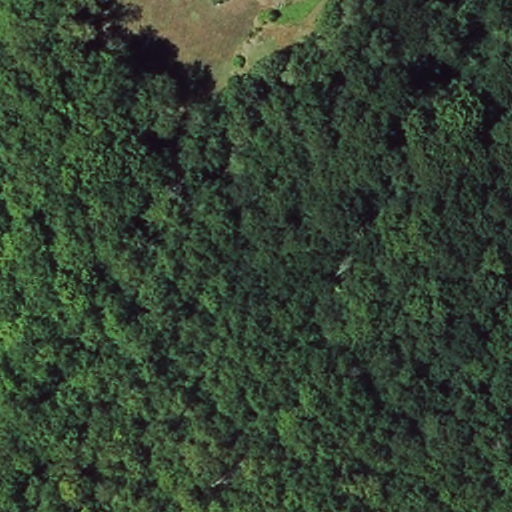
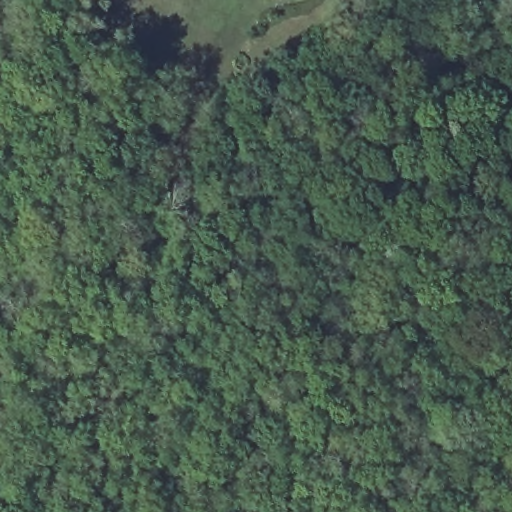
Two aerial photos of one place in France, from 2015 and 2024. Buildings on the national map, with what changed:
[]

